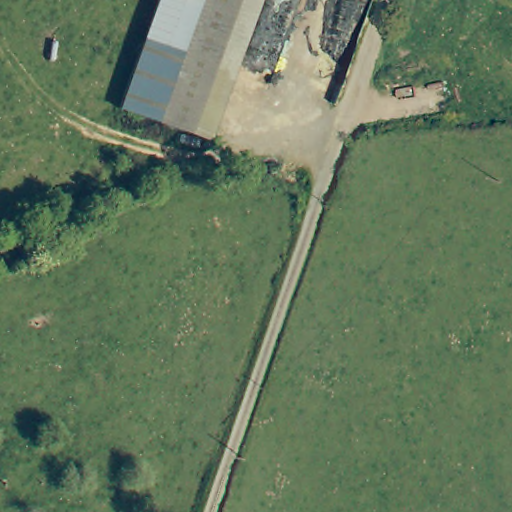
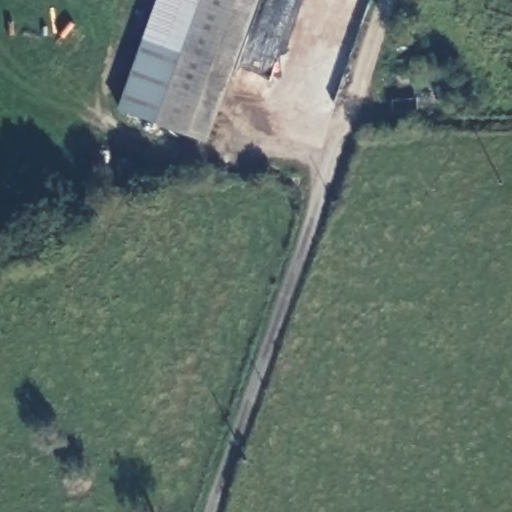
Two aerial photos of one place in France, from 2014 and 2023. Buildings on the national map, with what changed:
unchanged [(156,0),(257,0),(234,65),(144,32),(156,0)]
unchanged [(207,135),(119,103),(144,32),(234,65),(207,135)]

